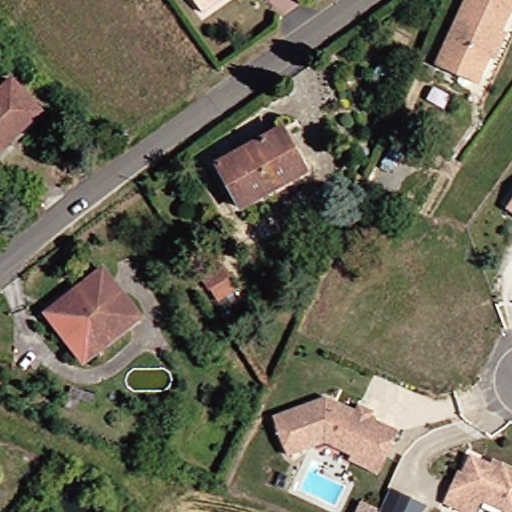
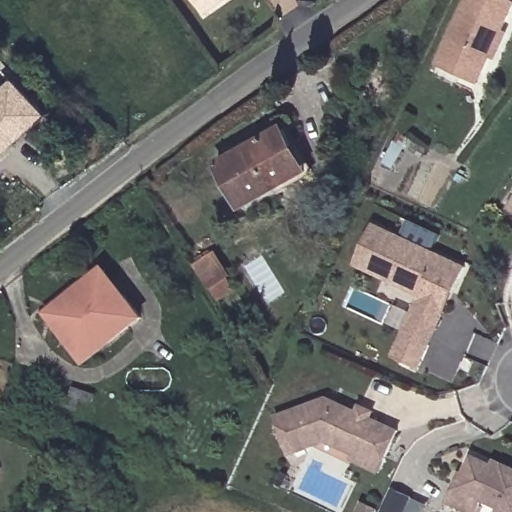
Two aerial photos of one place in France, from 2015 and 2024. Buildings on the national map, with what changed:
unchanged [(195,0),(222,0),(204,12),(195,0)]
unchanged [(432,66),(463,0),(512,0),(512,4),(510,2),(496,31),(502,34),(490,60),(484,58),(476,74),(472,84),(455,76),(432,66)]
unchanged [(16,132),(13,128),(0,141),(0,81),(7,75),(40,110),(16,132)]
unchanged [(283,129),(306,171),(241,207),(218,165),(283,129)]
unchanged [(505,209),(512,200),(512,213),(505,209)]
new [(353,265),(372,226),(462,269),(450,293),(441,289),(432,310),(417,303),(416,302),(418,296),(401,288),(353,265)]
unchanged [(215,295),(200,271),(222,258),(236,282),(215,295)]
unchanged [(77,356),(50,321),(55,318),(49,310),(68,294),(98,271),(118,297),(135,318),(102,343),(80,360),(77,356)]
new [(417,303),(432,310),(441,289),(450,293),(426,345),(415,367),(391,356),(402,334),(417,303)]
unchanged [(90,401),(80,398),(75,410),(66,407),(72,388),(92,395),(90,401)]
unchanged [(345,463),(348,458),(320,444),(285,457),(271,419),(323,401),(353,416),(356,410),(370,416),(366,422),(394,436),(380,464),(373,477),(345,463)]
unchanged [(480,500),(474,512),(464,512),(444,502),(452,486),(455,487),(470,456),(499,469),(501,464),(512,470),(512,512),(505,512),(480,500)]
unchanged [(403,512),(381,512),(391,489),(409,497),(403,512)]
unchanged [(375,512),(357,512),(361,502),(376,509),(375,512)]

